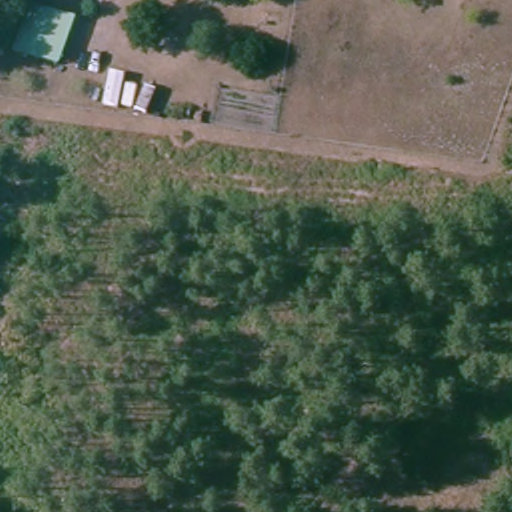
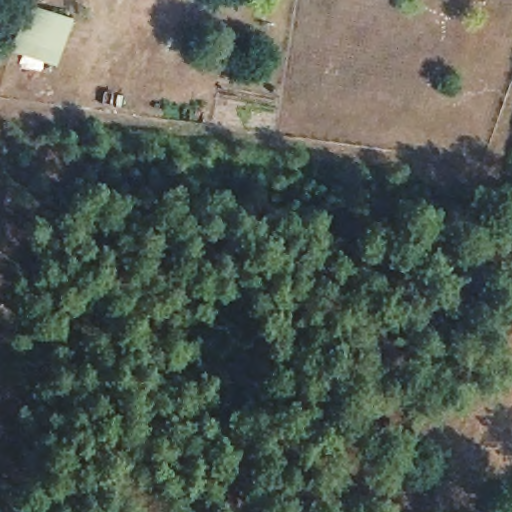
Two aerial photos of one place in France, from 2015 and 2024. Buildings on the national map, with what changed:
unchanged [(56,67),(12,54),(25,6),(72,18),(56,67)]

